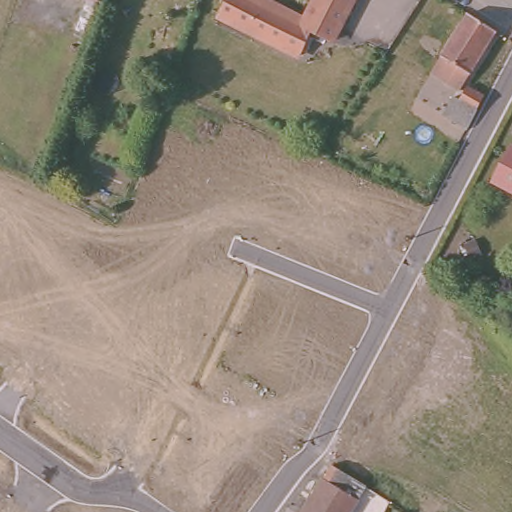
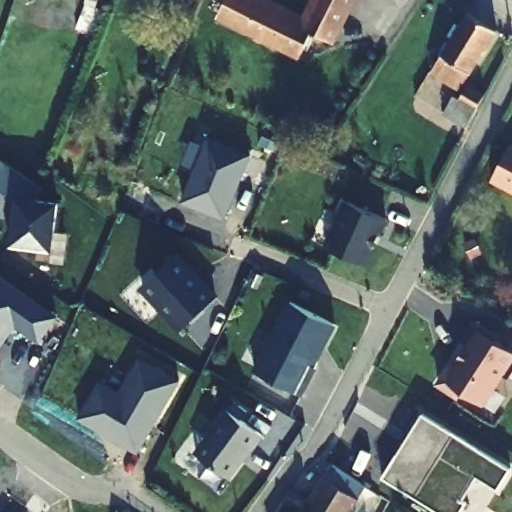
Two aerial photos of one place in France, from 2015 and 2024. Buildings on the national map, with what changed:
unchanged [(220,12),(225,0),(249,0),(309,30),(298,50),(220,12)]
unchanged [(330,41),(309,30),(312,23),(324,0),(350,0),(330,41)]
demolished [(413,49),(392,36),(416,0),(444,0),(413,49)]
unchanged [(466,80),(437,61),(470,8),(500,27),(466,80)]
unchanged [(481,108),(465,100),(472,85),(488,94),(481,108)]
new [(208,135),(252,154),(225,220),(182,201),(208,135)]
unchanged [(512,143),(512,190),(489,178),(507,140),(512,143)]
new [(0,190),(0,171),(5,165),(38,191),(37,203),(17,200),(17,203),(0,190)]
new [(57,205),(50,252),(10,247),(17,200),(57,205)]
new [(382,235),(378,234),(372,247),(376,249),(368,265),(325,246),(345,200),(388,220),(382,235)]
new [(140,287),(179,251),(219,295),(180,331),(140,287)]
new [(57,316),(39,343),(15,326),(0,348),(0,276),(57,316)]
new [(302,395),(255,371),(287,301),(337,326),(302,395)]
new [(455,360),(468,341),(460,336),(472,318),(495,333),(493,336),(512,348),(512,369),(508,375),(501,371),(481,401),(460,387),(457,392),(438,380),(452,358),(455,360)]
new [(78,417),(100,380),(120,391),(140,356),(180,380),(138,453),(78,417)]
new [(230,480),(195,453),(228,408),(266,437),(230,480)]
new [(507,473),(495,493),(473,481),(459,505),(463,506),(460,512),(429,512),(380,481),(420,418),(507,473)]
unchanged [(323,478),(332,464),(367,485),(352,512),(300,512),(321,477),(323,478)]

